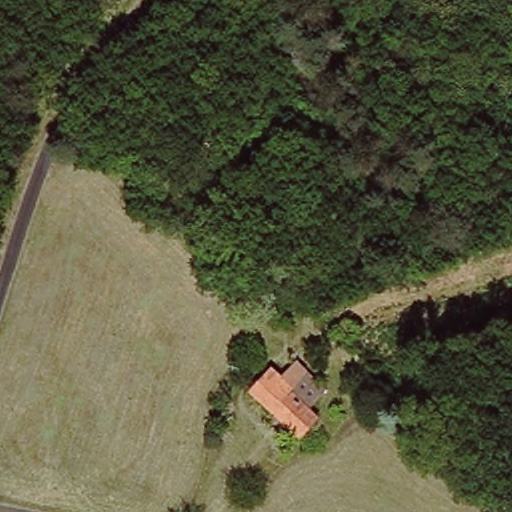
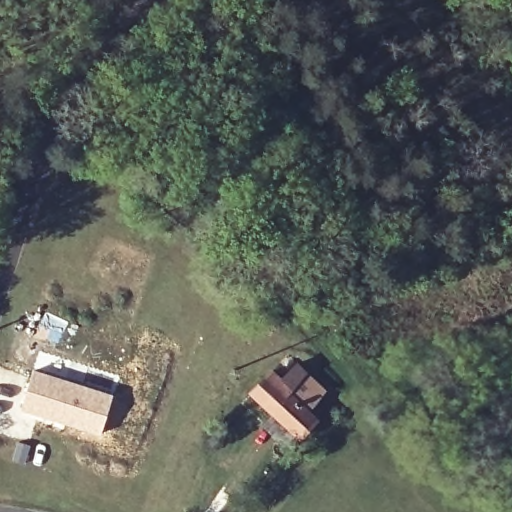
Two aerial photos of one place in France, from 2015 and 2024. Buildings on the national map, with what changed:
new [(44,311),(67,321),(59,342),(36,332),(44,311)]
new [(33,369),(113,393),(100,436),(19,411),(33,369)]
unchanged [(286,382),(299,370),(325,395),(307,415),(315,423),(299,438),(257,396),(279,376),(286,382)]

